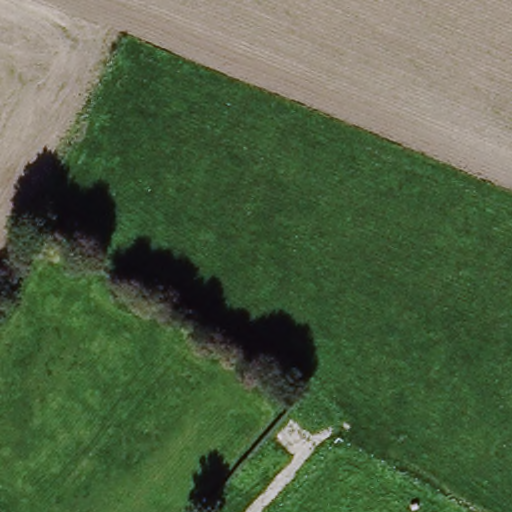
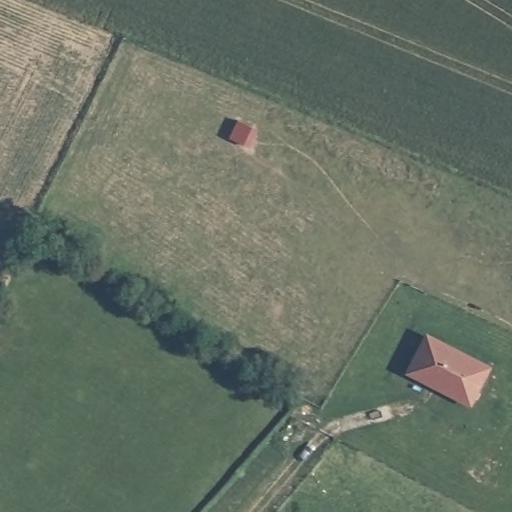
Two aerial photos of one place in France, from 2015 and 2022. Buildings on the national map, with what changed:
new [(494,368),(472,408),(405,375),(426,335),(494,368)]

